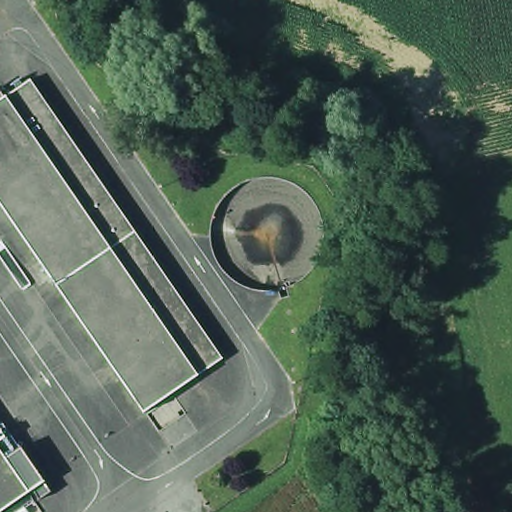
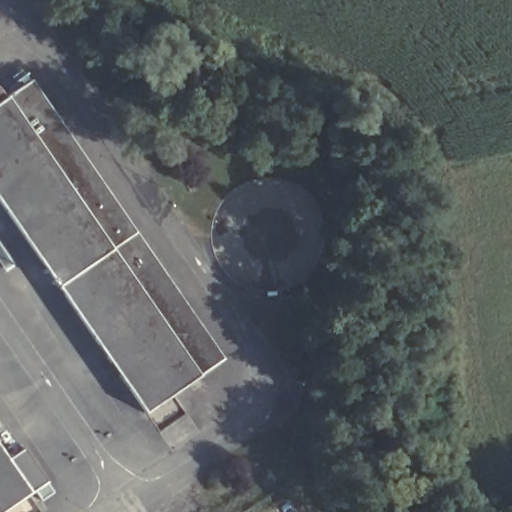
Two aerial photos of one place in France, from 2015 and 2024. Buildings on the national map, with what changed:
unchanged [(0,101),(33,79),(223,354),(143,408),(0,200),(0,101)]
unchanged [(0,503),(0,448),(24,485),(0,503)]

